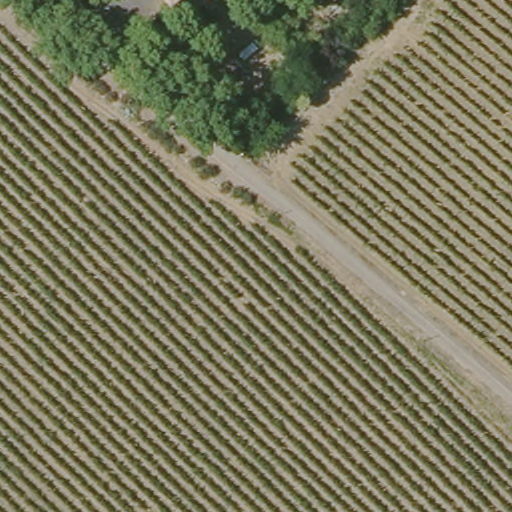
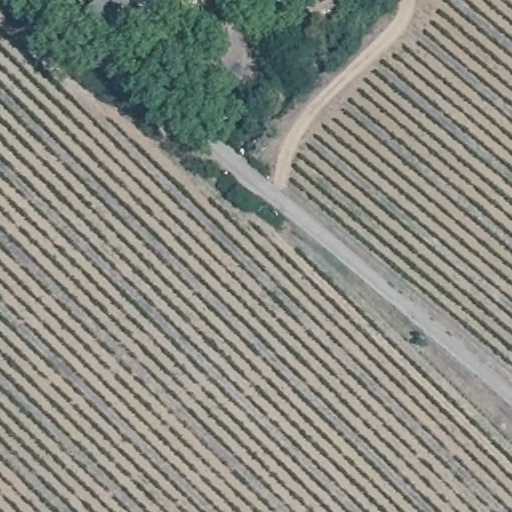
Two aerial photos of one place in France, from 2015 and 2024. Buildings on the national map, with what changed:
unchanged [(95,1),(96,0),(166,0),(123,35),(95,1)]

